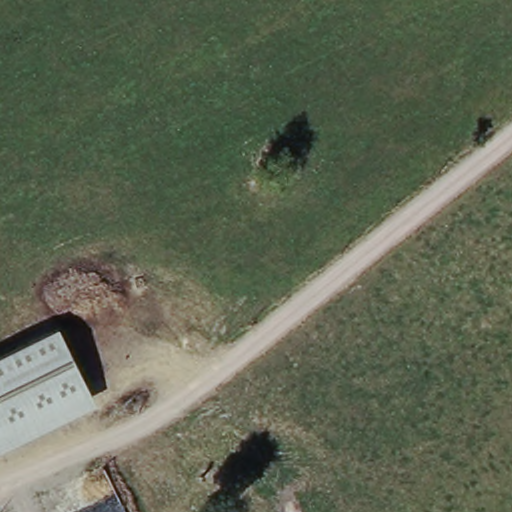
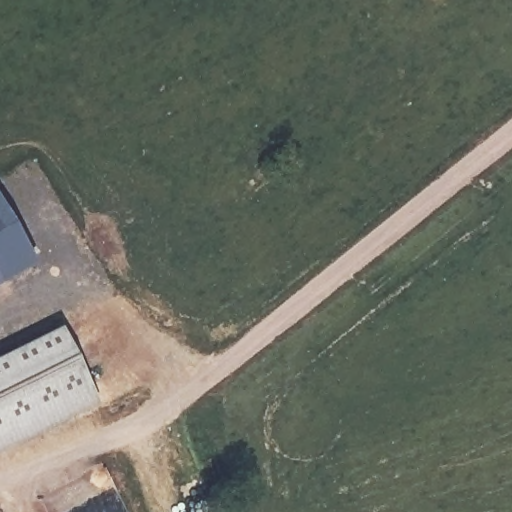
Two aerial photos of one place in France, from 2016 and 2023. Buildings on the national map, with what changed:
new [(0,280),(0,202),(34,260),(0,280)]
unchanged [(95,406),(0,452),(0,358),(56,330),(95,406)]

